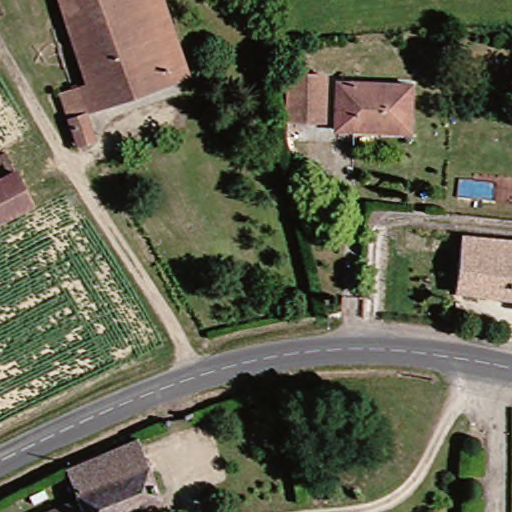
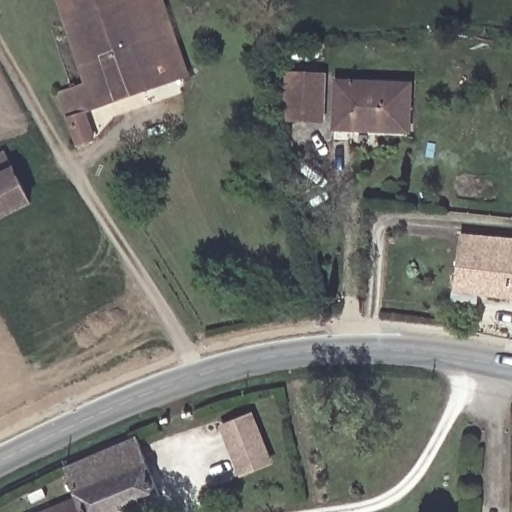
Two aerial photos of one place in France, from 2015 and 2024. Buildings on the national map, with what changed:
unchanged [(169,79),(87,114),(93,141),(73,150),(63,127),(55,100),(83,90),(61,30),(49,0),(137,0),(144,15),(169,79)]
unchanged [(169,79),(144,15),(137,0),(154,0),(185,74),(169,79)]
unchanged [(278,123),(280,76),(319,79),(317,124),(278,123)]
unchanged [(328,131),(327,85),(401,84),(401,131),(328,131)]
unchanged [(3,160),(26,213),(0,225),(0,162),(3,160)]
unchanged [(412,233),(411,246),(399,245),(400,231),(412,233)]
unchanged [(455,237),(512,243),(512,296),(451,289),(455,237)]
new [(274,466),(240,479),(220,426),(254,413),(274,466)]
unchanged [(62,498),(52,470),(130,436),(154,500),(124,512),(30,512),(62,498)]

